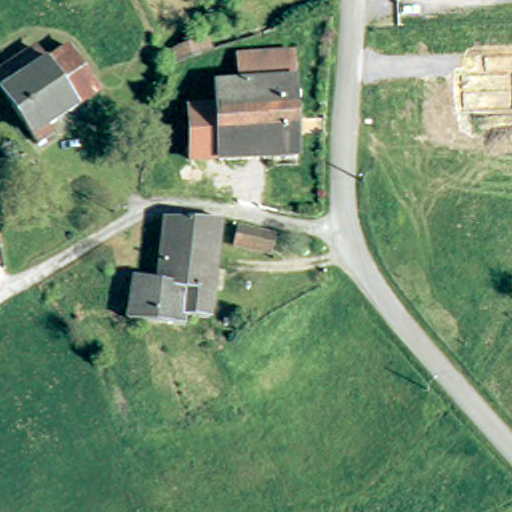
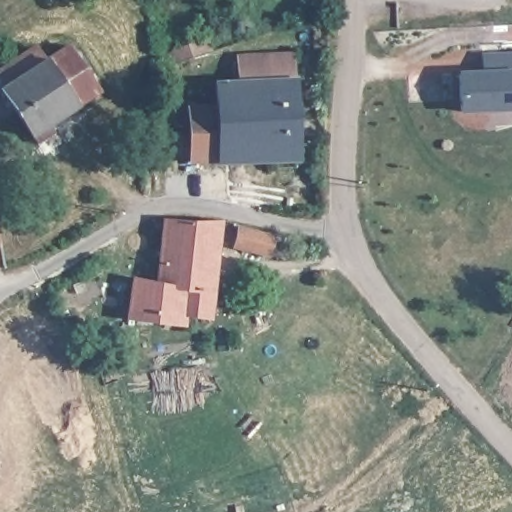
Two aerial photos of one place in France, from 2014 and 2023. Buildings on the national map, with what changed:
unchanged [(42,149),(37,142),(8,97),(0,102),(0,62),(35,39),(42,50),(44,55),(51,66),(53,65),(85,112),(55,131),(60,138),(42,149)]
unchanged [(182,44),(197,40),(202,56),(171,66),(168,56),(185,50),(182,44)]
unchanged [(85,112),(53,65),(51,66),(44,55),(58,46),(67,41),(105,99),(97,104),(85,112)]
new [(512,109),(460,111),(457,72),(480,70),(480,54),(512,54),(512,109)]
unchanged [(227,163),(227,161),(200,162),(198,110),(225,110),(225,86),(248,86),(247,58),(305,57),(307,160),(227,163)]
unchanged [(228,299),(218,298),(215,327),(190,323),(189,333),(135,325),(140,283),(162,287),(167,259),(161,258),(162,249),(168,250),(172,224),(227,228),(220,278),(230,280),(228,299)]
unchanged [(242,253),(247,232),(280,239),(275,260),(242,253)]
unchanged [(0,262),(0,246),(1,246),(3,261),(0,262)]

